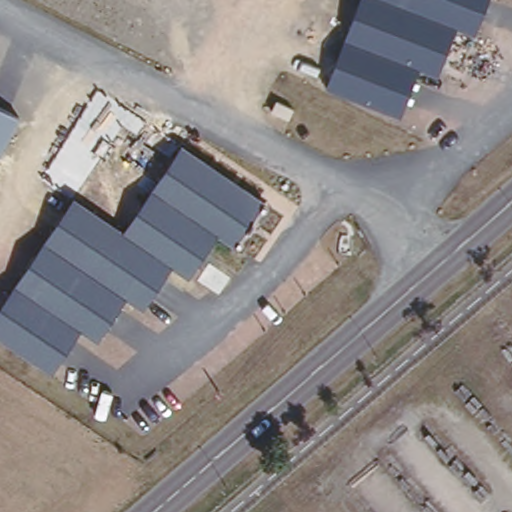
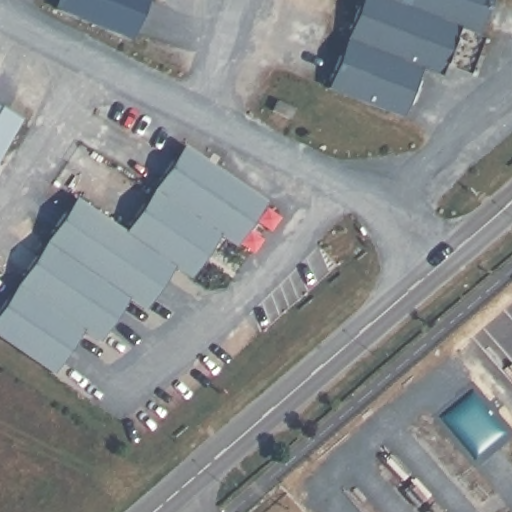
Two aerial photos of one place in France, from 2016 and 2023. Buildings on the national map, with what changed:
new [(58,4),(60,0),(142,0),(131,31),(58,4)]
unchanged [(455,25),(438,73),(417,66),(399,115),(322,85),(356,0),(486,0),(474,32),(455,25)]
unchanged [(0,152),(0,105),(20,116),(0,152)]
unchanged [(239,248),(218,236),(190,277),(171,265),(143,309),(126,299),(100,341),(81,330),(52,373),(0,339),(0,309),(75,195),(126,228),(182,143),(270,200),(239,248)]

